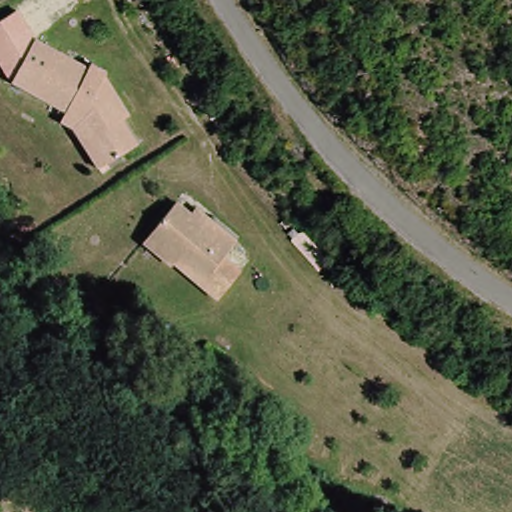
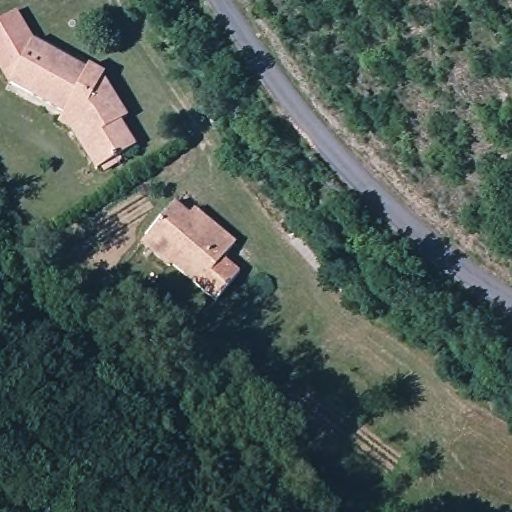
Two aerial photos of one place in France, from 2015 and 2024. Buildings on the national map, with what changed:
unchanged [(0,20),(17,9),(33,40),(22,35),(5,81),(0,71),(0,20)]
unchanged [(27,91),(5,81),(22,35),(45,46),(27,91)]
unchanged [(60,120),(65,108),(27,91),(45,46),(80,62),(83,57),(99,64),(97,71),(107,78),(116,89),(128,104),(124,108),(143,133),(123,149),(107,164),(87,139),(78,127),(60,120)]
unchanged [(146,243),(155,232),(182,198),(195,209),(200,202),(215,214),(238,234),(227,249),(246,264),(221,297),(178,260),(174,266),(146,243)]

